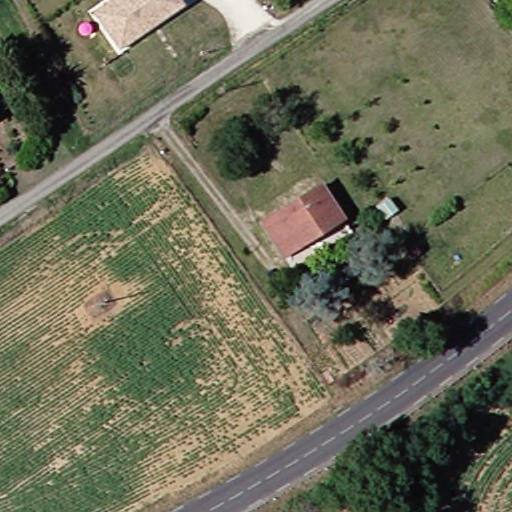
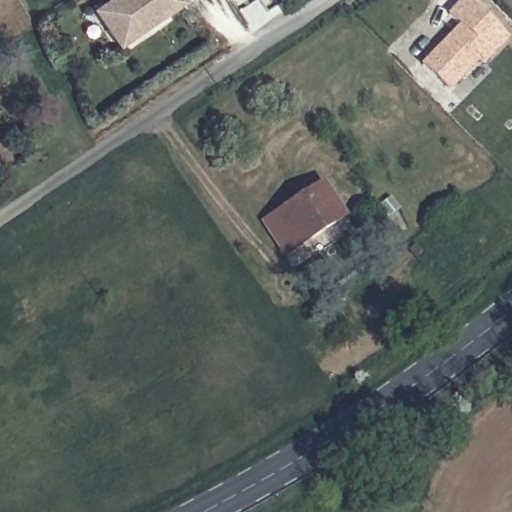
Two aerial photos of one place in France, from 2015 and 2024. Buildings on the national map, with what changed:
unchanged [(119,48),(107,30),(94,11),(105,3),(109,0),(180,0),(183,4),(147,29),(135,37),(119,48)]
new [(456,29),(444,18),(458,3),(502,44),(478,68),(474,63),(443,95),(417,69),(448,36),(456,29)]
unchanged [(347,218),(287,255),(267,221),(327,186),(347,218)]

